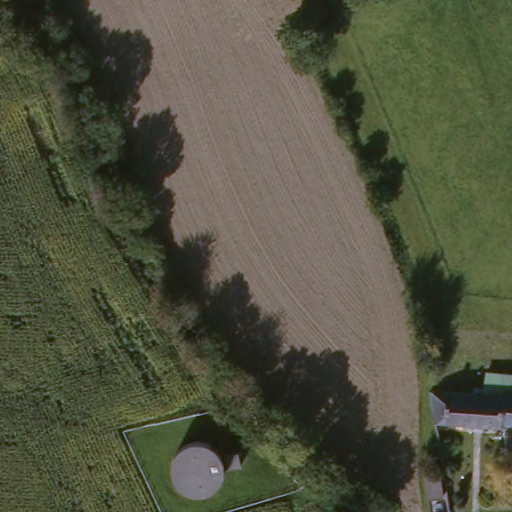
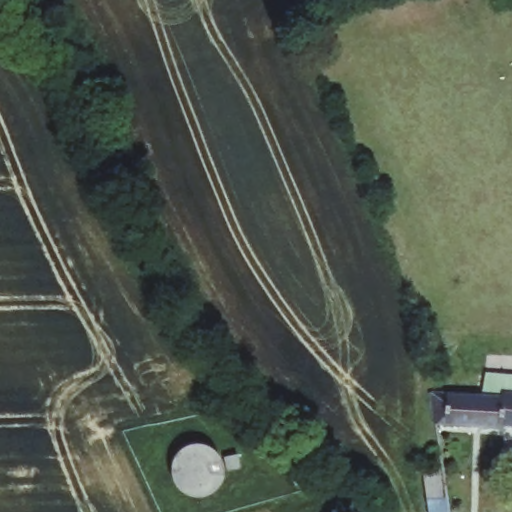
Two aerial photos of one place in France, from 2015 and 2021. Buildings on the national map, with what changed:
unchanged [(512,392),(512,418),(435,414),(434,389),(512,392)]
unchanged [(448,464),(454,512),(433,512),(423,470),(448,464)]

